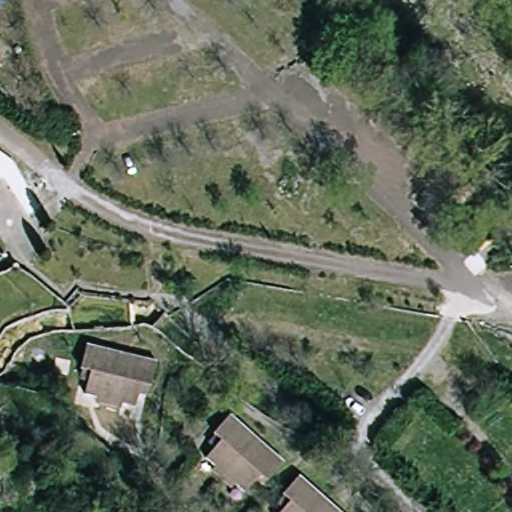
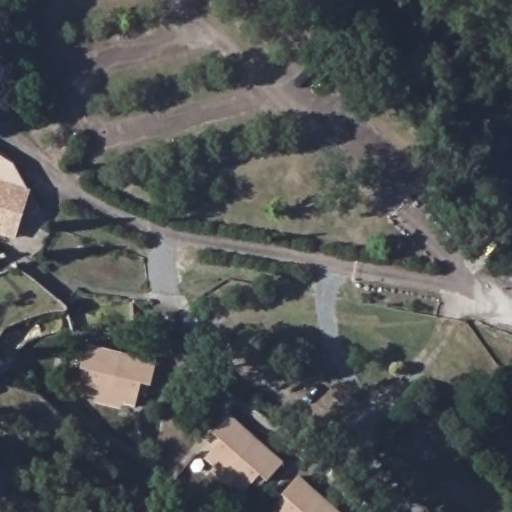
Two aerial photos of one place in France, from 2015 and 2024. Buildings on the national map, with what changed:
new [(0,234),(0,157),(13,166),(30,191),(15,239),(0,234)]
demolished [(100,290),(69,268),(80,254),(112,274),(100,290)]
unchanged [(150,385),(141,383),(137,405),(84,395),(88,374),(79,373),(84,349),(154,362),(150,385)]
unchanged [(158,441),(163,416),(189,413),(200,377),(228,391),(188,450),(158,441)]
unchanged [(269,481),(261,474),(245,492),(210,461),(225,444),(217,437),(234,417),(285,461),(269,481)]
unchanged [(279,495),(297,475),(338,512),(277,512),(286,502),(279,495)]

